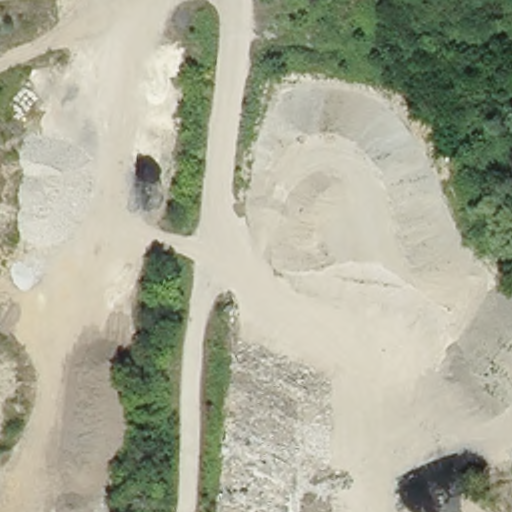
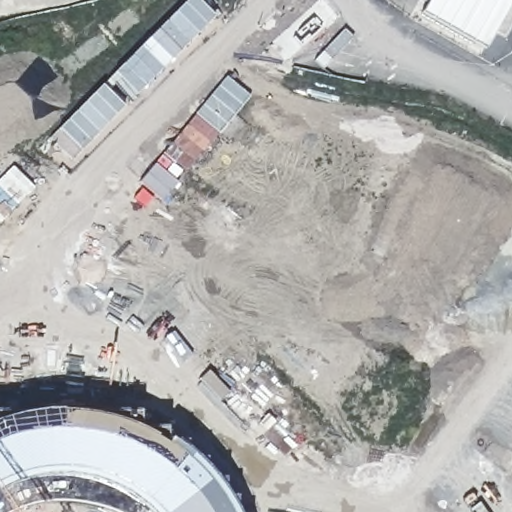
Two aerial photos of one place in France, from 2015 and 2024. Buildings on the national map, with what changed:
new [(512,7),(489,47),(424,15),(431,1),(429,0),(512,0),(512,7)]
new [(10,418),(30,415),(50,413),(69,414),(89,416),(108,421),(127,427),(145,435),(162,445),(178,457),(193,471),(206,485),(218,501),(224,512),(93,512),(88,510),(74,506),(59,504),(45,504),(31,506),(17,510),(12,512),(0,512),(0,421),(10,418)]

